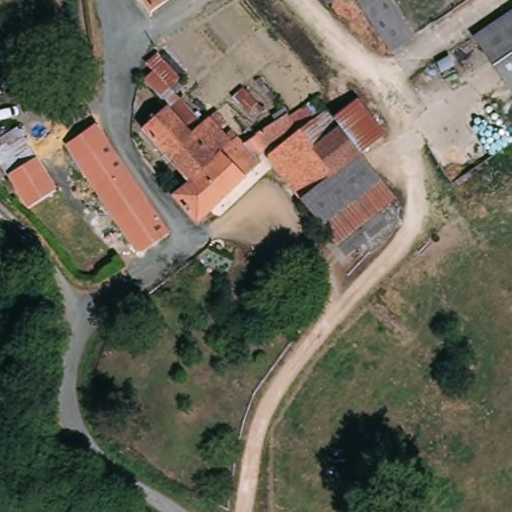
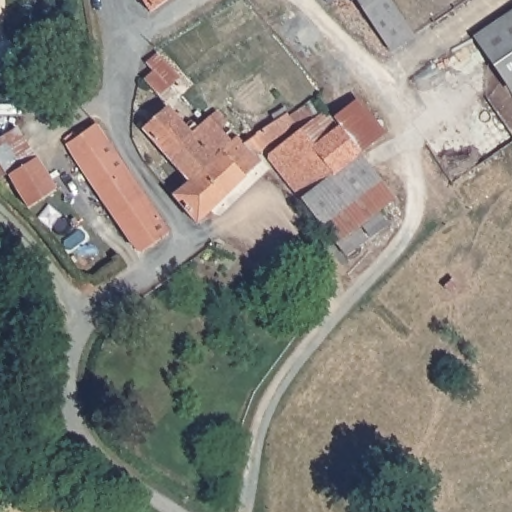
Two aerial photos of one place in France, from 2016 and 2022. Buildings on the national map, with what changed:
unchanged [(150,14),(142,0),(170,0),(150,14)]
unchanged [(328,4),(325,0),(335,0),(328,4)]
unchanged [(415,36),(388,54),(352,0),(390,0),(415,36)]
unchanged [(512,82),(508,84),(478,42),(512,20),(512,82)]
unchanged [(160,74),(152,65),(162,55),(184,79),(174,88),(207,125),(196,134),(173,109),(150,82),(160,74)]
unchanged [(335,98),(350,86),(367,109),(388,135),(383,139),(375,145),(365,154),(326,105),(335,98)]
unchanged [(342,246),(273,160),(275,154),(302,133),(299,128),(268,151),(261,157),(267,163),(202,225),(177,196),(195,183),(195,182),(232,146),(241,137),(249,144),(262,135),(291,114),(293,114),(295,117),(318,102),(321,102),(326,105),(365,154),(400,200),(362,230),(371,241),(351,258),(342,246)]
unchanged [(232,146),(195,182),(195,183),(149,131),(173,109),(196,134),(207,125),(221,112),(231,123),(224,130),(230,136),(236,131),(241,137),(232,146)]
unchanged [(77,163),(67,145),(70,142),(71,142),(85,132),(95,125),(170,235),(137,252),(77,163)]
unchanged [(8,177),(0,164),(0,142),(17,130),(35,160),(8,177)]
unchanged [(8,177),(35,160),(56,193),(29,210),(8,177)]
unchanged [(380,238),(377,240),(368,229),(386,216),(395,226),(380,238)]

